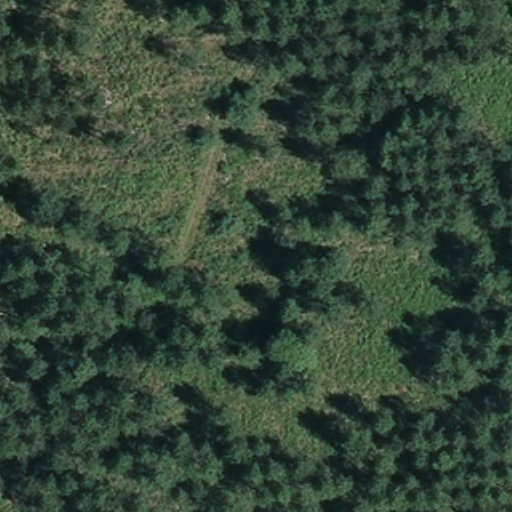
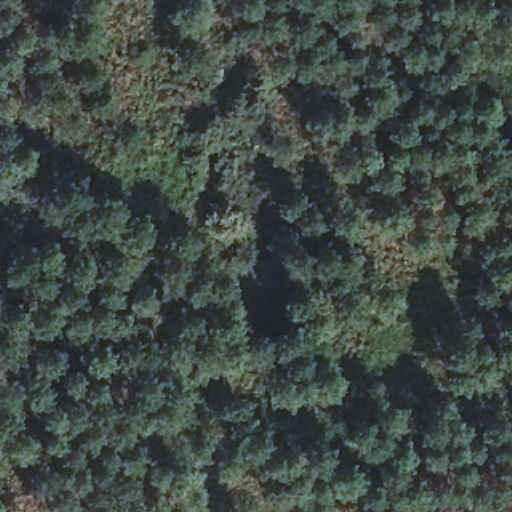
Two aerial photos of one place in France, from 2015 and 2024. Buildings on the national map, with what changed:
[]

